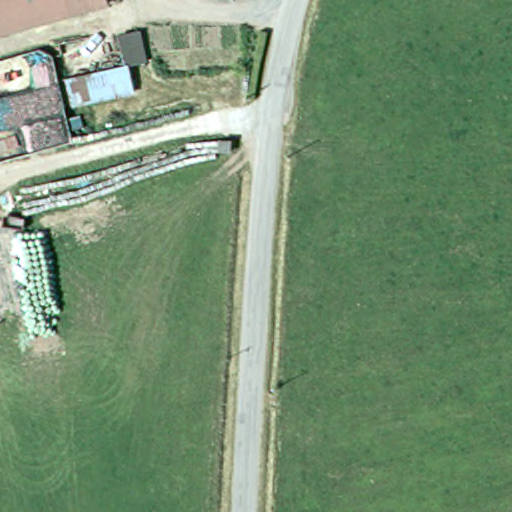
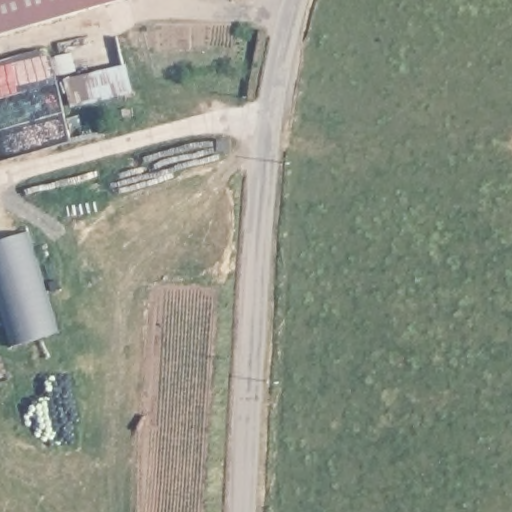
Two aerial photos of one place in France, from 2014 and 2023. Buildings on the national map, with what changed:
unchanged [(110,7),(72,17),(0,38),(0,0),(125,0),(108,4),(110,7)]
unchanged [(122,65),(115,36),(141,29),(149,60),(129,66),(134,92),(70,106),(63,79),(122,65)]
new [(24,231),(53,334),(11,344),(0,308),(0,238),(24,231)]

